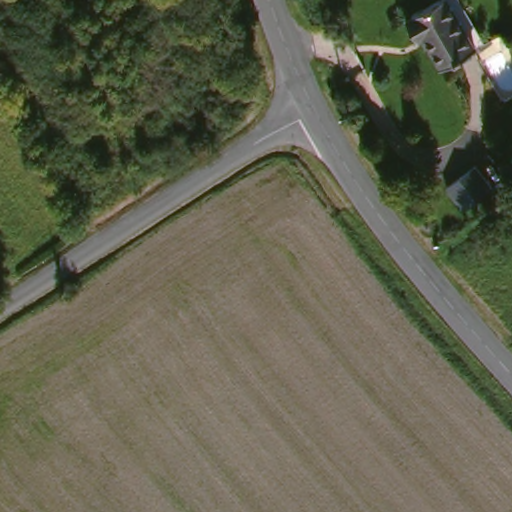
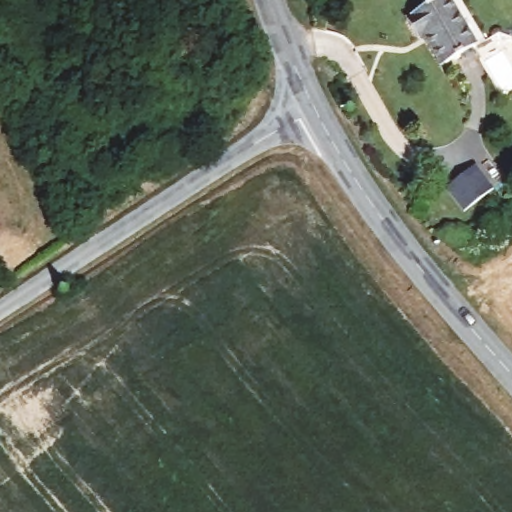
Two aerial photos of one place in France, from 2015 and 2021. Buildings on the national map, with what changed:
unchanged [(442,66),(423,35),(417,38),(406,20),(412,16),(411,14),(434,0),(459,0),(484,41),(476,46),(442,66)]
unchanged [(477,162),(497,186),(466,211),(447,186),(477,162)]

